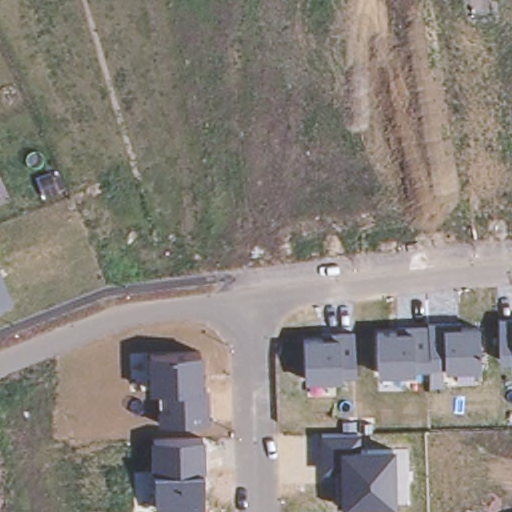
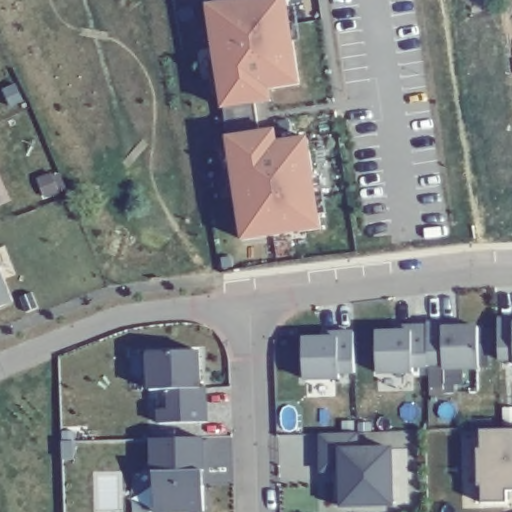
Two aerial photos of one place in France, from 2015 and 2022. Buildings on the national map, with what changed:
new [(252,0),(289,0),(301,85),(271,90),(273,103),(224,109),(208,6),(252,0)]
new [(227,138),(277,130),(279,140),(310,134),(324,230),(244,242),(227,138)]
unchanged [(0,308),(0,274),(11,303),(0,308)]
unchanged [(499,318),(512,318),(512,361),(500,363),(499,318)]
unchanged [(377,333),(396,332),(396,326),(427,326),(427,322),(460,321),(459,327),(479,326),(480,369),(445,371),(445,387),(430,387),(430,369),(414,370),(415,375),(379,376),(377,333)]
unchanged [(304,338),(324,338),(324,333),(354,332),(355,377),(340,376),(340,380),(305,381),(304,338)]
unchanged [(158,391),(150,392),(147,354),(202,349),(204,385),(209,386),(211,420),(160,425),(158,391)]
unchanged [(340,476),(322,477),(322,433),(361,433),(361,447),(395,447),(396,506),(340,508),(340,476)]
unchanged [(154,474),(151,474),(150,440),(205,437),(206,470),(204,471),(204,511),(204,512),(155,512),(154,474)]
new [(507,500),(508,512),(482,512),(482,495),(479,495),(478,458),(482,458),(481,439),(512,438),(512,500),(507,500)]

